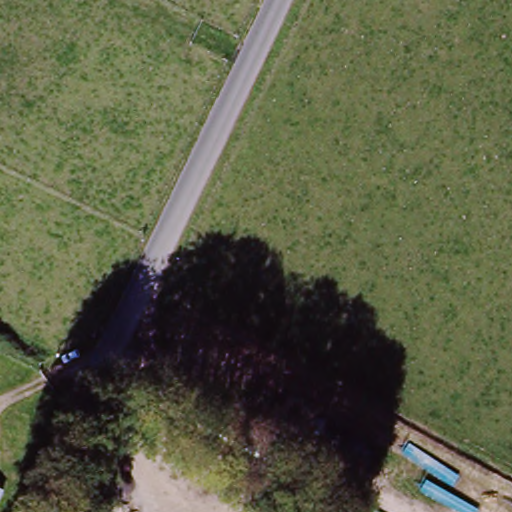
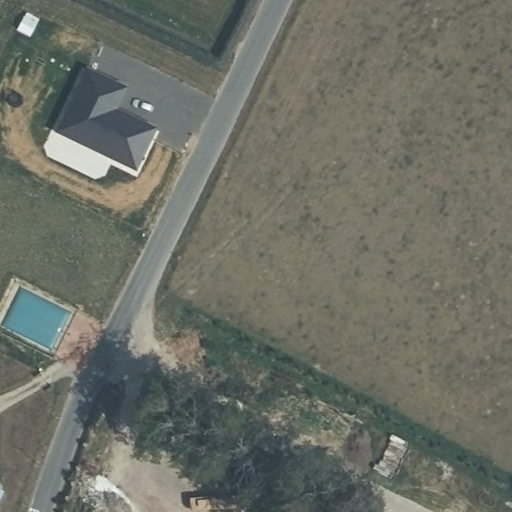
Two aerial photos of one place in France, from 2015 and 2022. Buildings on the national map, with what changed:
new [(81,67),(122,84),(111,111),(131,119),(133,114),(154,122),(137,165),(55,132),(81,67)]
unchanged [(0,504),(0,486),(6,490),(0,504)]

